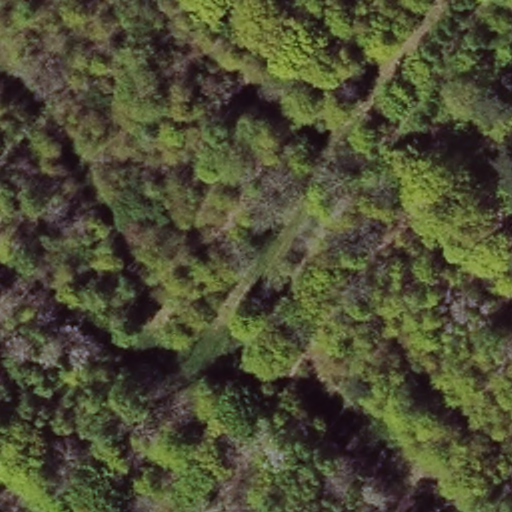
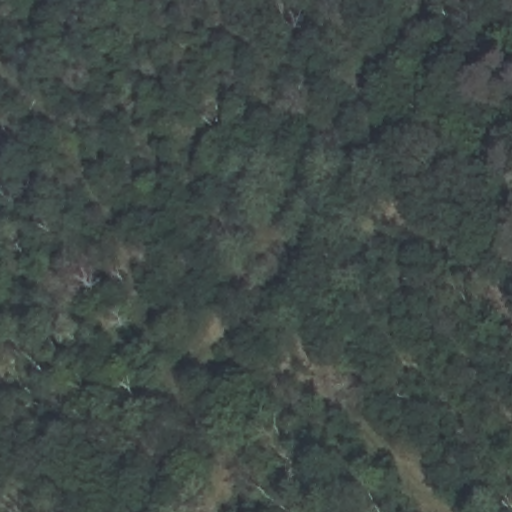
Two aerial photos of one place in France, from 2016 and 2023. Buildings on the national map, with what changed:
[]

